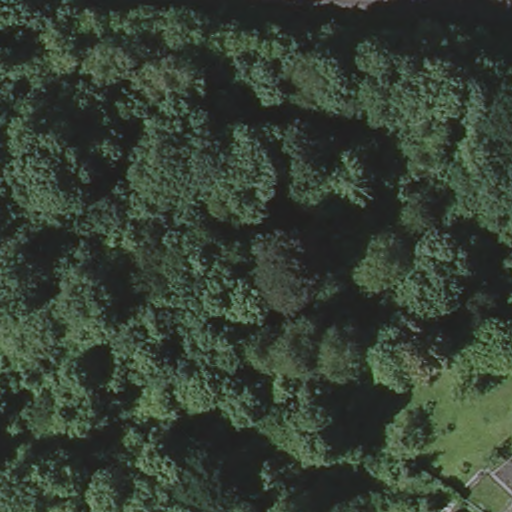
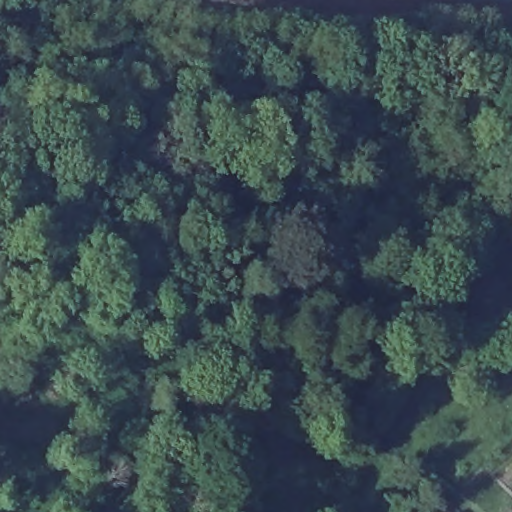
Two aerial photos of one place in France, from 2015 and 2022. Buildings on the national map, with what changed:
unchanged [(193,362),(202,327),(225,333),(216,367),(193,362)]

